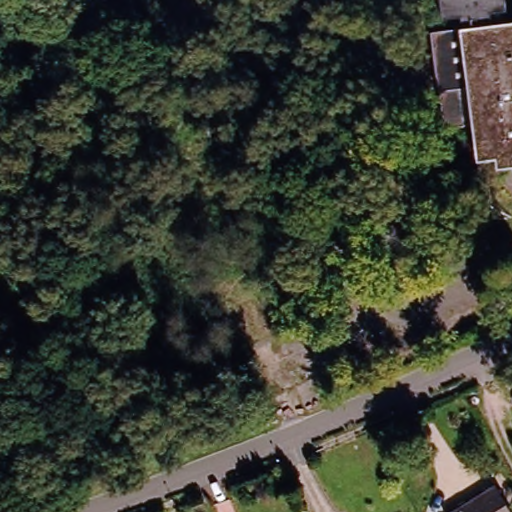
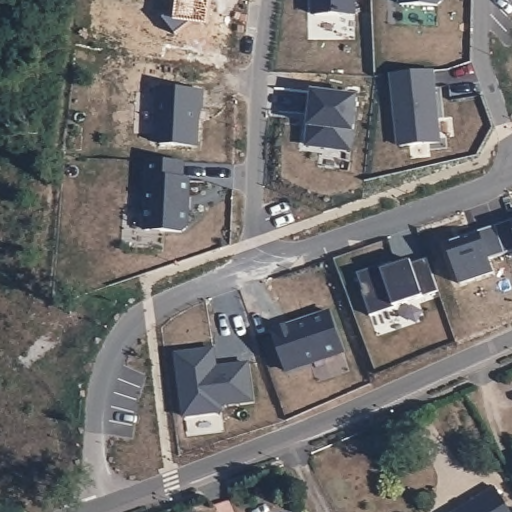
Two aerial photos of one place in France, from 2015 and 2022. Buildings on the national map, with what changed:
new [(315,16),(314,0),(354,0),(355,15),(315,16)]
new [(444,0),(438,6),(401,5),(401,0),(444,0)]
demolished [(497,170),(497,157),(472,159),(474,123),(440,126),(434,36),(446,35),(441,0),(503,0),(505,14),(512,13),(512,169),(497,170)]
new [(434,70),(442,142),(400,146),(392,74),(434,70)]
new [(204,93),(202,110),(200,109),(198,147),(161,146),(156,140),(158,91),(204,93)]
new [(351,151),(308,146),(314,93),(357,98),(351,151)]
new [(182,180),(189,180),(188,198),(186,197),(185,209),(187,210),(187,228),(181,233),(145,231),(148,161),(183,163),(182,180)]
new [(439,292),(395,307),(396,309),(371,317),(362,293),(364,292),(357,275),(381,266),(382,271),(411,261),(412,264),(427,259),(439,292)]
new [(287,372),(274,332),(300,323),(300,325),(306,323),(307,320),(330,312),(344,352),(287,372)]
new [(214,350),(217,373),(217,368),(229,367),(248,364),(253,402),(222,406),(222,413),(185,418),(177,355),(214,350)]
unchanged [(509,512),(450,512),(491,485),(509,512)]

